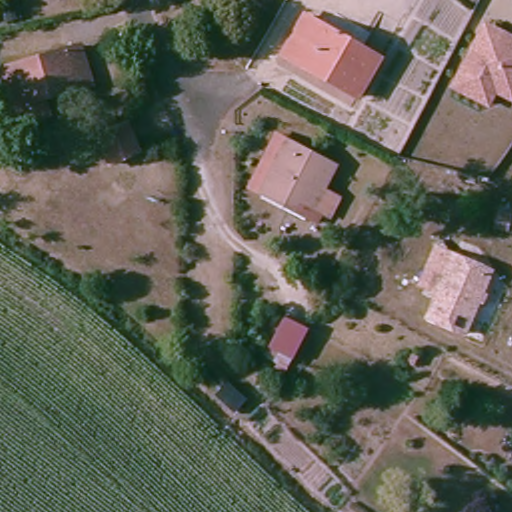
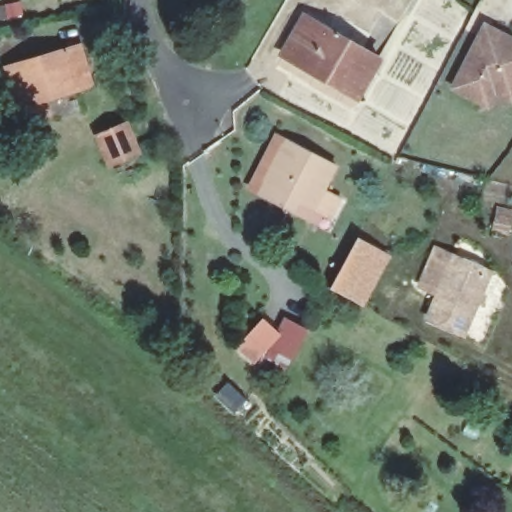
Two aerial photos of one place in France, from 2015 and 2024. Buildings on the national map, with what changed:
unchanged [(373,58),(350,96),(279,52),(303,15),(373,58)]
unchanged [(512,104),(497,96),(489,109),(450,87),(485,21),(512,33),(512,104)]
unchanged [(60,111),(27,122),(9,67),(23,62),(88,41),(100,79),(103,86),(57,102),(60,111)]
unchanged [(319,221),(253,187),(279,134),(288,139),(267,182),(324,211),(319,221)]
unchanged [(326,189),(342,197),(333,215),(324,211),(267,182),(288,139),(338,164),(326,189)]
unchanged [(127,166),(99,175),(91,151),(120,142),(127,166)]
unchanged [(493,224),(496,207),(512,211),(512,213),(509,227),(493,224)]
new [(329,285),(359,234),(392,254),(364,305),(329,285)]
demolished [(502,257),(486,253),(489,237),(506,240),(502,257)]
unchanged [(427,253),(475,272),(479,285),(457,340),(420,326),(430,300),(411,292),(427,253)]
unchanged [(291,347),(287,355),(265,343),(278,317),(300,328),(291,347)]
unchanged [(237,402),(227,412),(209,396),(219,385),(237,402)]

